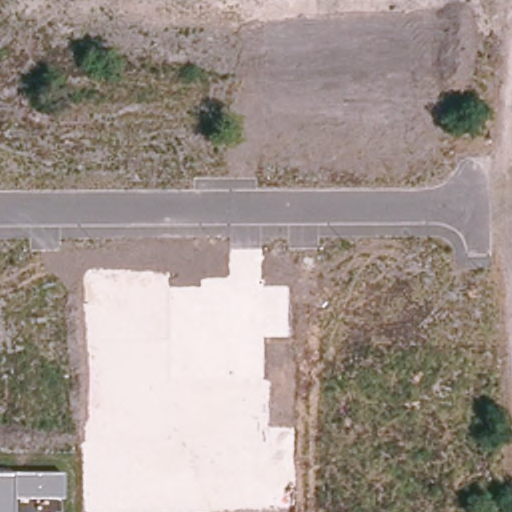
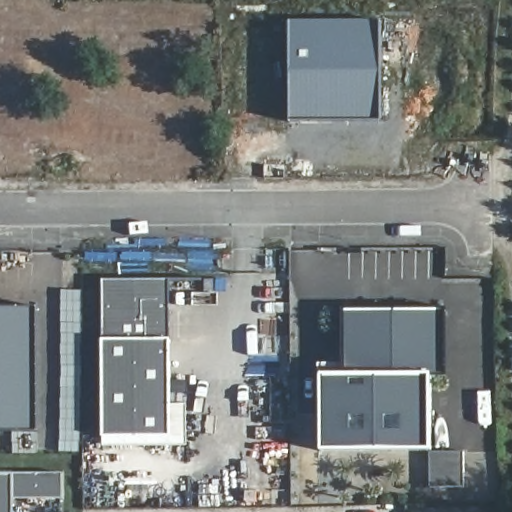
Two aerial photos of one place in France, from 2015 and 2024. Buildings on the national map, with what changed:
new [(292,121),(290,20),(380,20),(382,120),(292,121)]
new [(104,436),(104,339),(105,279),(169,279),(170,339),(171,436),(104,436)]
new [(80,451),(61,451),(61,291),(81,291),(80,451)]
new [(0,305),(36,305),(37,431),(0,431),(0,305)]
new [(446,374),(431,374),(344,374),(343,310),(445,309),(446,374)]
new [(431,450),(322,450),(322,374),(344,374),(431,374),(431,450)]
new [(430,453),(465,453),(465,488),(430,488),(430,453)]
unchanged [(11,498),(12,512),(0,512),(0,474),(63,472),(63,497),(11,498)]

